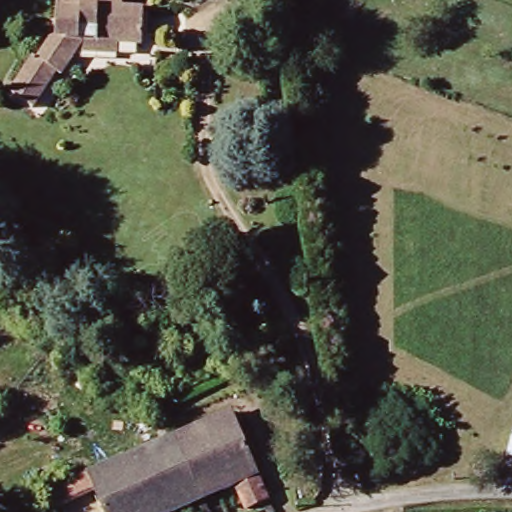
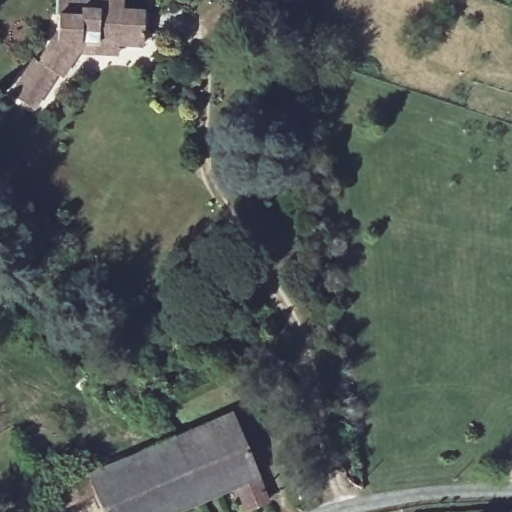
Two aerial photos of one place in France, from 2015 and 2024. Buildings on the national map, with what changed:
unchanged [(143,45),(80,43),(62,75),(55,71),(36,104),(11,88),(32,52),(40,56),(57,27),(56,0),(80,0),(97,2),(97,0),(119,0),(120,7),(140,6),(143,45)]
unchanged [(267,497),(249,505),(237,481),(199,498),(172,438),(231,412),(267,497)]
unchanged [(60,501),(54,488),(172,438),(199,498),(167,512),(104,512),(94,487),(60,501)]

